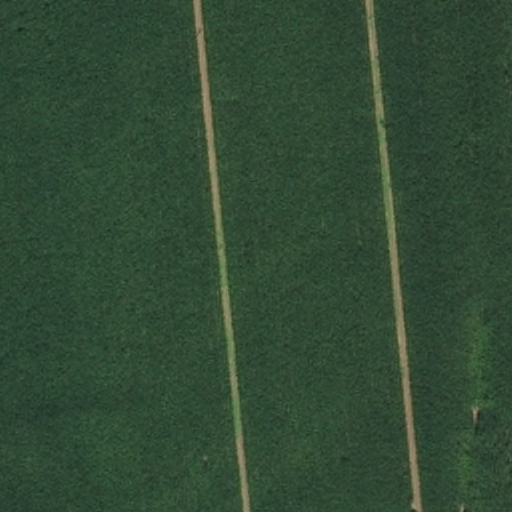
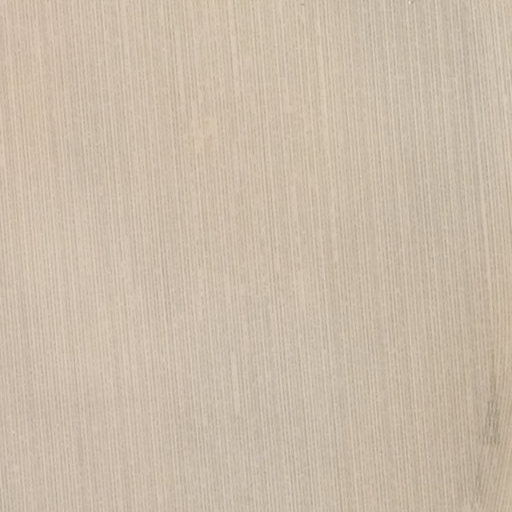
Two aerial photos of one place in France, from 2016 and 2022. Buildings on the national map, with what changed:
[]

